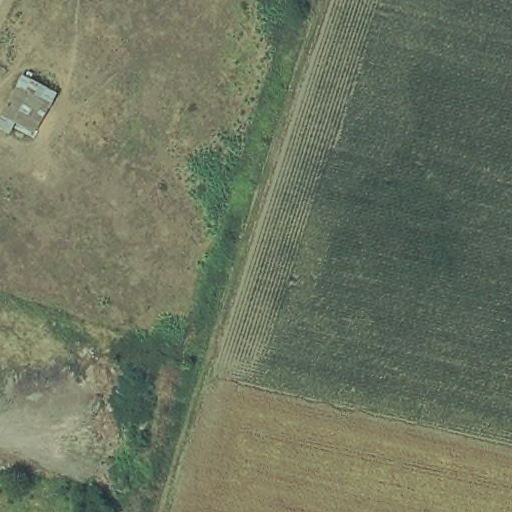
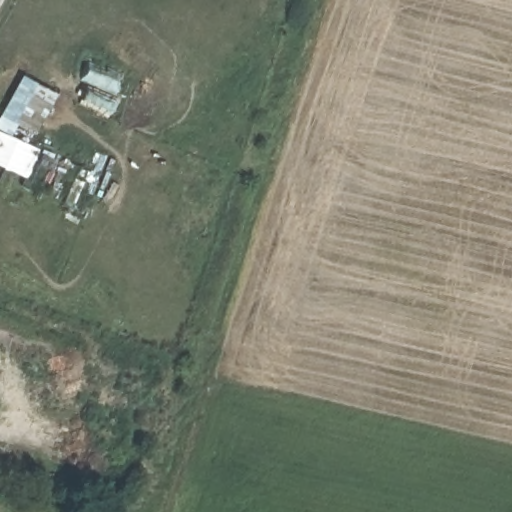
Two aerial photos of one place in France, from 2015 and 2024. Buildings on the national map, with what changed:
unchanged [(61,90),(43,125),(24,118),(15,132),(1,127),(25,74),(61,90)]

